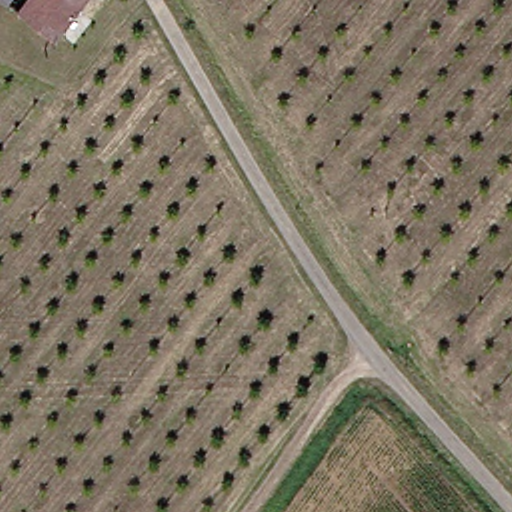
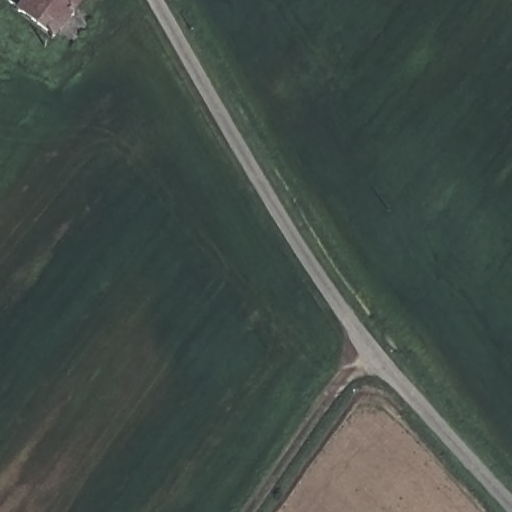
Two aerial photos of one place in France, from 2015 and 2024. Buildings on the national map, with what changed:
unchanged [(3,0),(1,2),(0,4),(0,0),(3,0)]
unchanged [(1,2),(3,0),(29,0),(18,15),(1,2)]
unchanged [(18,15),(29,0),(78,0),(48,39),(18,15)]

